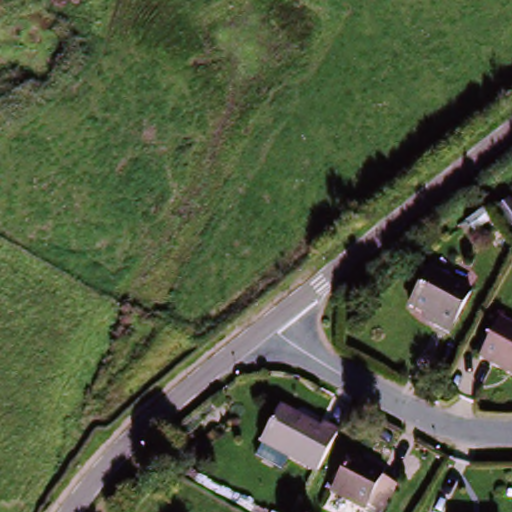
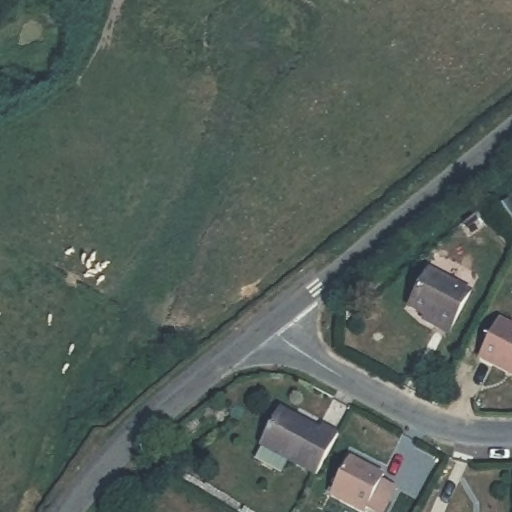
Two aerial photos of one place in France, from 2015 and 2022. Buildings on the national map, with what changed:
unchanged [(432,327),(432,322),(407,308),(426,271),(470,293),(446,335),(432,327)]
unchanged [(512,379),(478,363),(497,329),(512,336),(512,379)]
unchanged [(258,443),(278,410),(317,430),(320,425),(337,433),(315,474),(287,460),(280,474),(253,460),(260,447),(258,443)]
unchanged [(351,460),(385,477),(382,482),(397,489),(386,512),(366,512),(355,512),(331,500),(351,460)]

